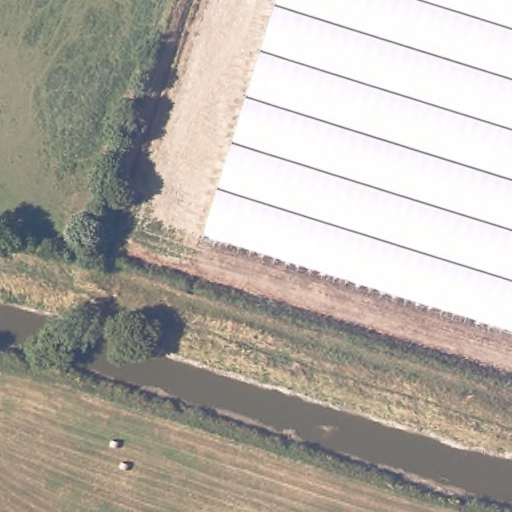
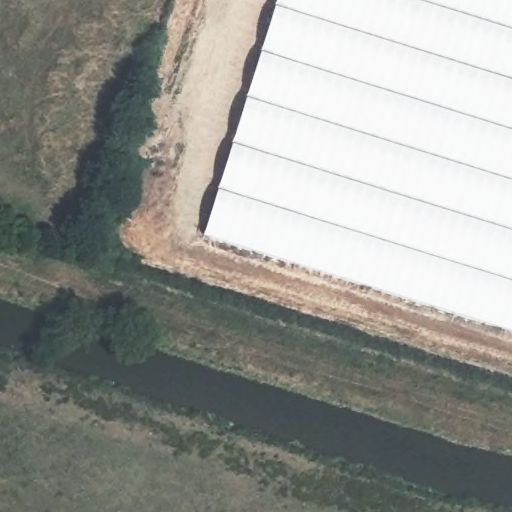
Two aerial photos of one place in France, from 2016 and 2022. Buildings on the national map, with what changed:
unchanged [(279,0),(512,0),(512,332),(206,236),(279,0)]

